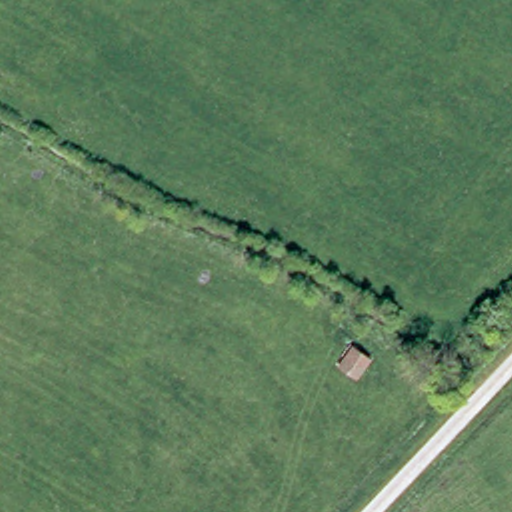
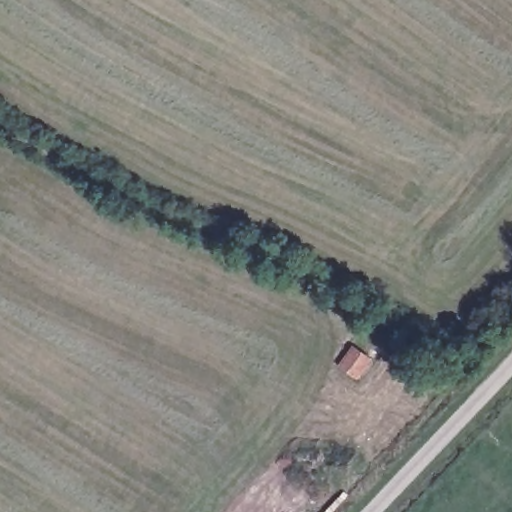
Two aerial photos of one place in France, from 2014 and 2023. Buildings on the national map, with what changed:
unchanged [(370,359),(358,378),(341,368),(352,349),(370,359)]

